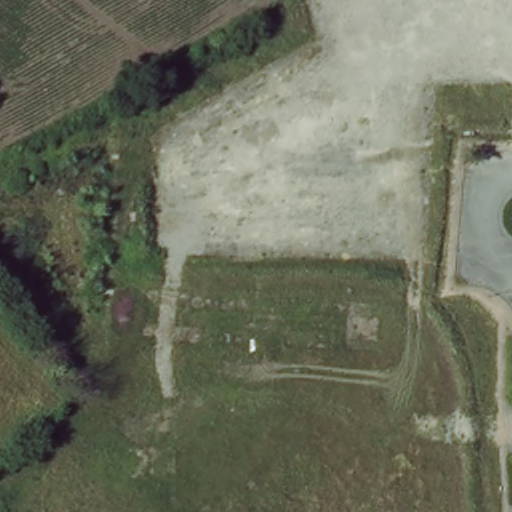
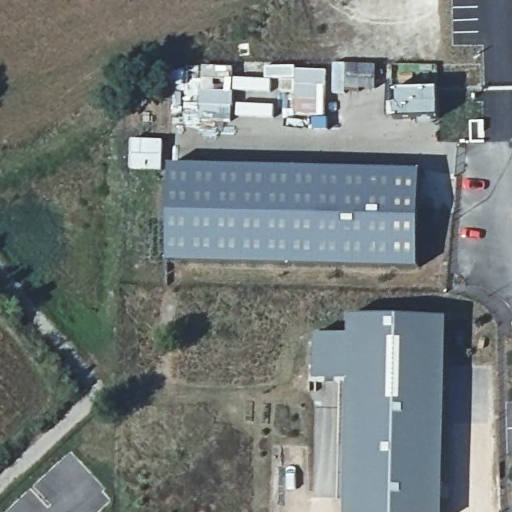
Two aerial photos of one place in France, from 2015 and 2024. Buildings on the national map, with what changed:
new [(433,87),(433,116),(384,116),(385,88),(433,87)]
new [(415,170),(413,267),(161,261),(163,162),(415,170)]
new [(342,334),(344,312),(442,315),(437,512),(340,512),(340,381),(308,380),(310,332),(342,334)]

